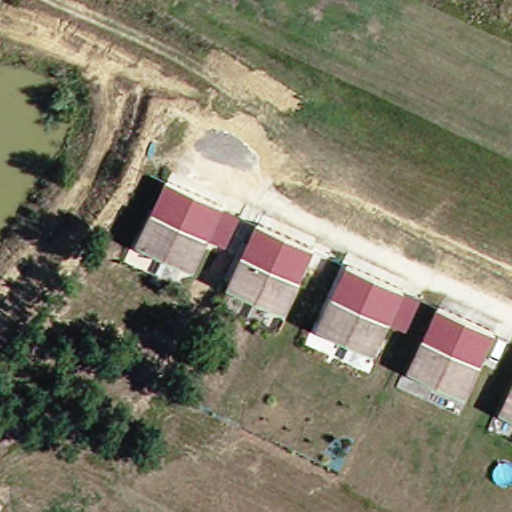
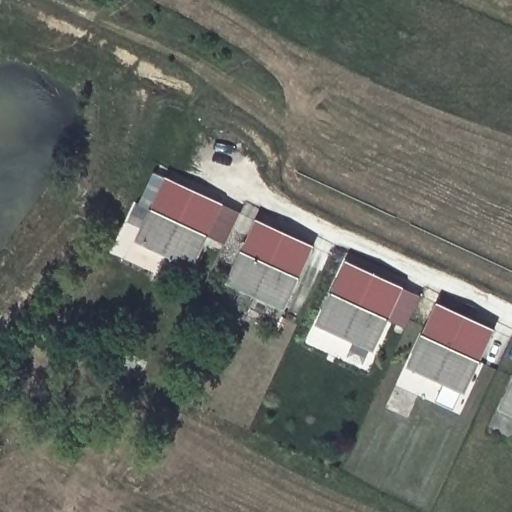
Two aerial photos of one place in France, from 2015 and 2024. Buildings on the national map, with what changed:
unchanged [(218,209),(189,274),(134,249),(162,184),(218,209)]
unchanged [(306,246),(278,311),(222,286),(250,221),(306,246)]
unchanged [(396,290),(368,355),(314,331),(343,266),(396,290)]
unchanged [(490,332),(462,396),(404,372),(434,307),(490,332)]
unchanged [(512,381),(512,419),(497,413),(512,381)]

